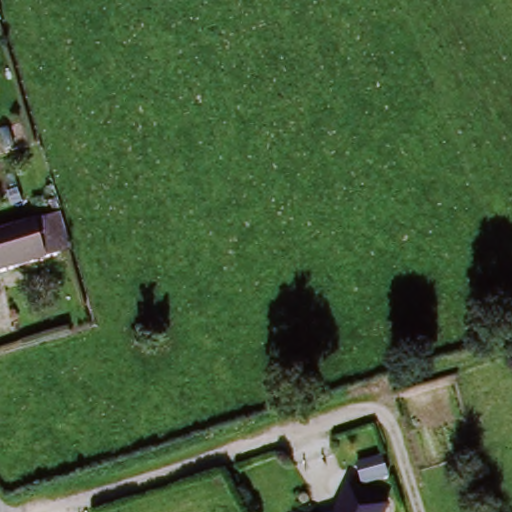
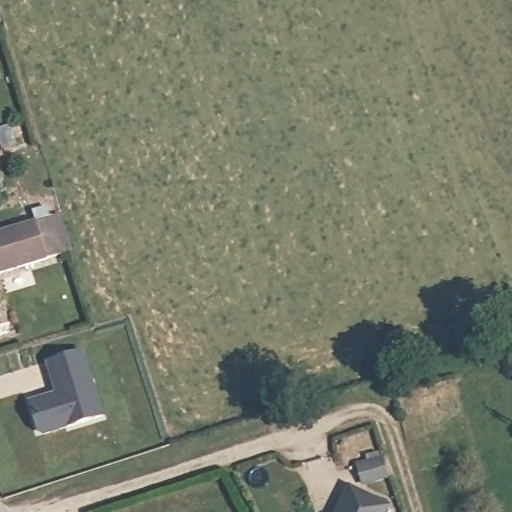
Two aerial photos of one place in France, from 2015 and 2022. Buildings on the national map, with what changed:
unchanged [(59,218),(70,253),(59,257),(0,276),(0,238),(48,222),(59,218)]
new [(106,417),(44,436),(37,432),(28,403),(56,394),(46,363),(84,350),(106,417)]
unchanged [(389,504),(386,512),(340,512),(350,487),(389,504)]

